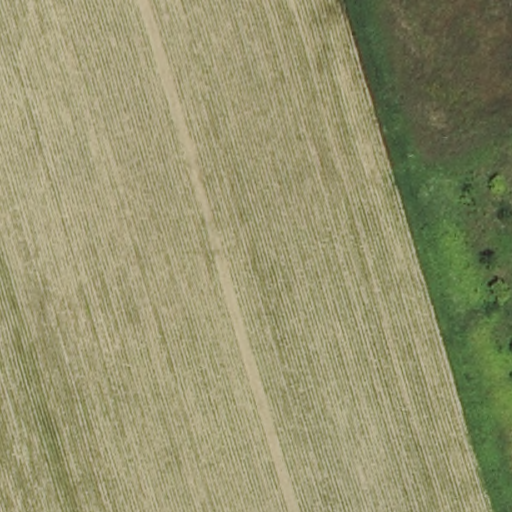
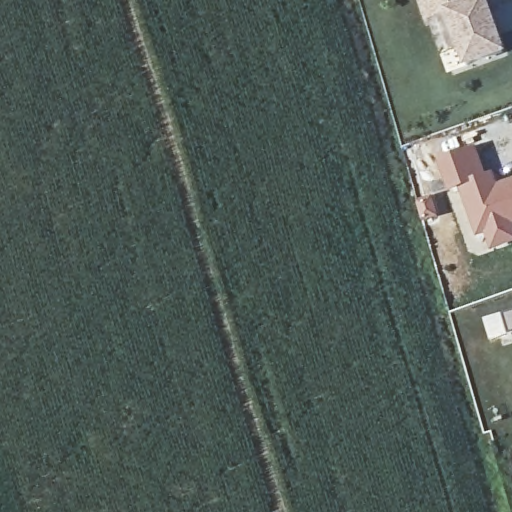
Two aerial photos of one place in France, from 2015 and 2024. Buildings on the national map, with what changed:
new [(427,26),(419,3),(429,0),(464,0),(468,11),(482,6),(502,58),(465,71),(446,20),(427,26)]
new [(477,148),(487,175),(494,173),(498,186),(512,182),(512,247),(492,254),(486,239),(478,242),(460,191),(449,194),(439,162),(477,148)]
new [(512,314),(512,337),(505,338),(498,318),(512,314)]

